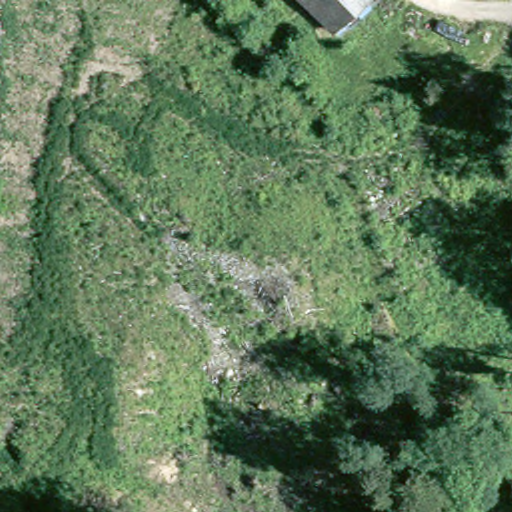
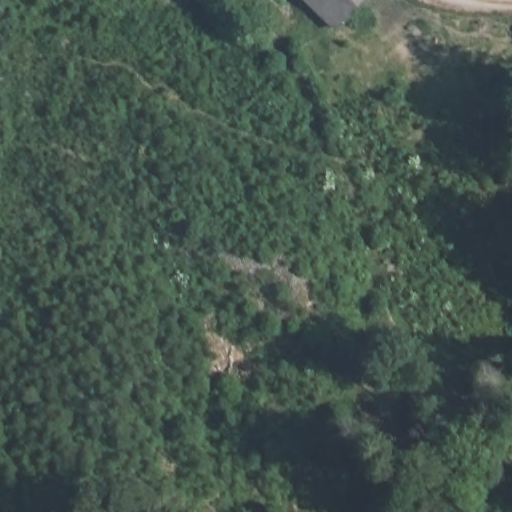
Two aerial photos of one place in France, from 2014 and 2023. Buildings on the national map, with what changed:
unchanged [(304,0),(353,0),(329,25),(304,0)]

